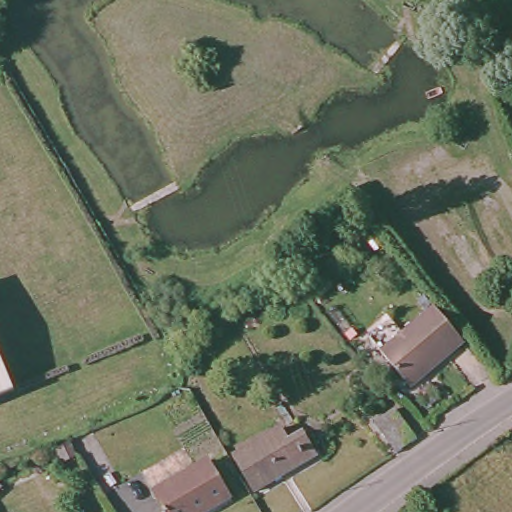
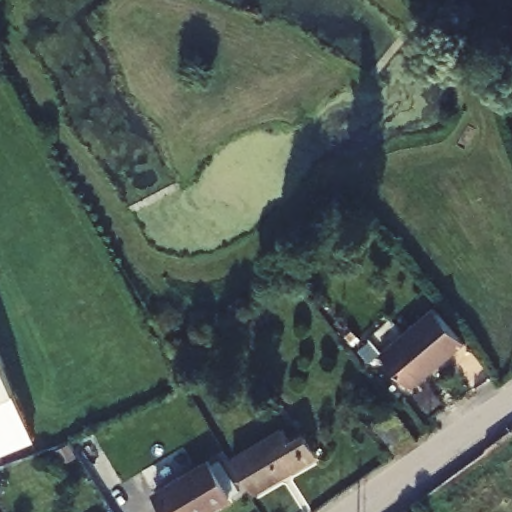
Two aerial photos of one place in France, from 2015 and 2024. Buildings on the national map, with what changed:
unchanged [(463,348),(465,350),(410,392),(381,357),(432,313),(463,348)]
unchanged [(0,398),(0,354),(16,392),(0,398)]
new [(0,455),(0,398),(16,392),(36,440),(0,455)]
unchanged [(392,411),(415,443),(396,457),(372,425),(392,411)]
unchanged [(232,458),(283,428),(290,441),(305,433),(318,456),(252,495),(232,458)]
unchanged [(231,501),(209,512),(165,512),(155,494),(211,464),(231,501)]

